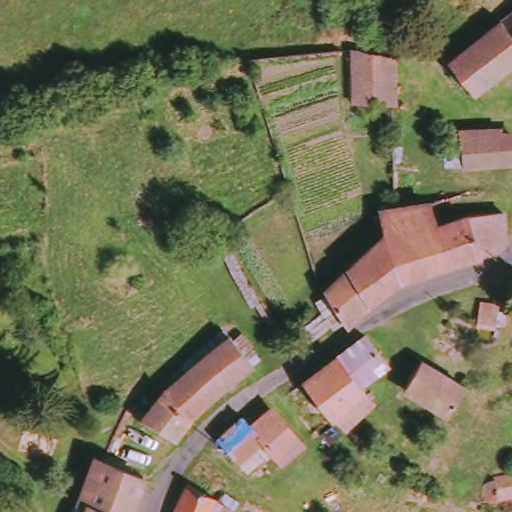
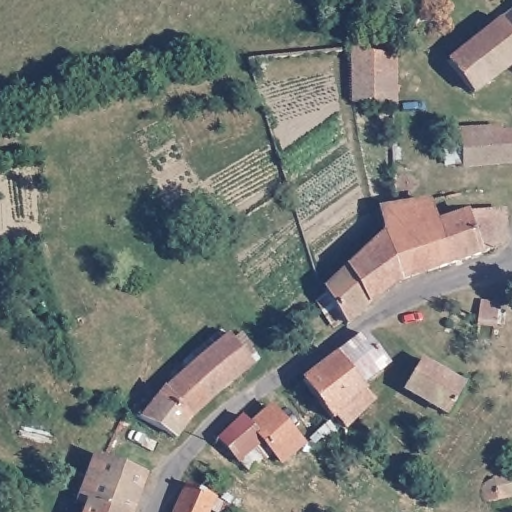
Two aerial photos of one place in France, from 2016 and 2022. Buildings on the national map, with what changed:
unchanged [(504,23),(508,21),(512,18),(512,33),(504,23)]
unchanged [(504,23),(512,33),(512,71),(480,95),(456,62),(504,23)]
unchanged [(404,107),(353,107),(353,53),(402,56),(404,107)]
unchanged [(466,165),(466,133),(512,133),(512,166),(466,165)]
unchanged [(321,284),(384,232),(378,217),(401,207),(417,200),(429,225),(477,216),(501,218),(496,242),(402,275),(351,318),(344,321),(321,284)]
unchanged [(228,339),(251,367),(254,370),(194,425),(168,396),(228,339)]
unchanged [(303,396),(361,345),(387,371),(363,395),(369,400),(384,417),(362,445),(341,427),(303,396)]
unchanged [(454,417),(409,394),(425,368),(426,369),(469,390),(454,417)]
unchanged [(168,396),(194,425),(177,447),(161,435),(136,420),(163,387),(168,396)]
unchanged [(239,463),(219,440),(247,417),(256,428),(278,408),(306,440),(289,455),(284,459),(274,450),(269,455),(260,447),(239,463)]
unchanged [(78,504),(97,458),(110,463),(141,475),(149,479),(135,512),(85,512),(86,508),(78,504)]
unchanged [(181,512),(195,489),(218,501),(212,512),(181,512)]

